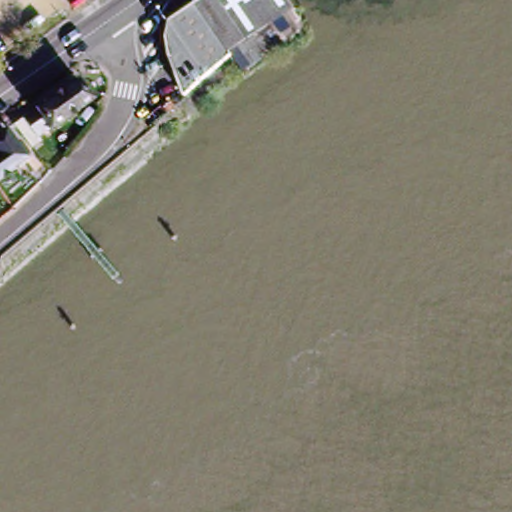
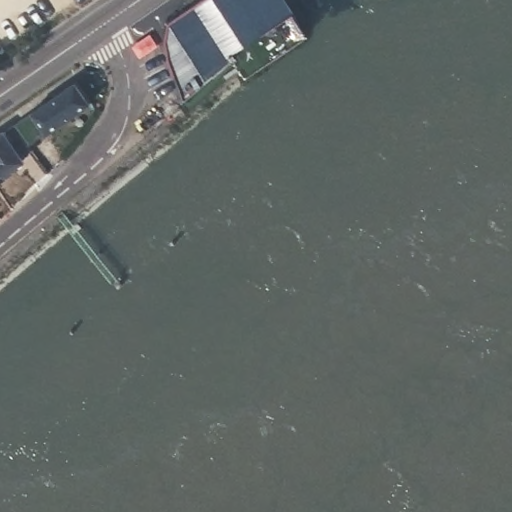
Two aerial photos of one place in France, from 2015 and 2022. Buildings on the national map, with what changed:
unchanged [(175,104),(160,64),(156,45),(160,27),(180,13),(199,0),(273,0),(284,17),(292,29),(292,33),(290,41),(235,80),(223,63),(216,69),(175,104)]
unchanged [(47,133),(46,131),(36,138),(40,143),(30,149),(11,126),(32,111),(75,82),(90,103),(47,133)]
unchanged [(11,145),(16,141),(25,154),(20,158),(20,159),(8,169),(10,170),(0,177),(0,134),(2,133),(11,145)]

